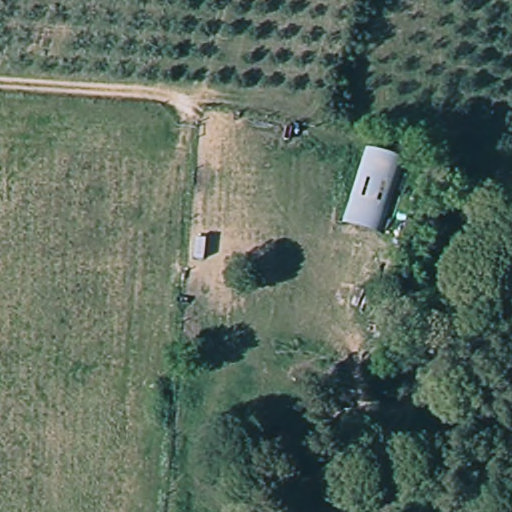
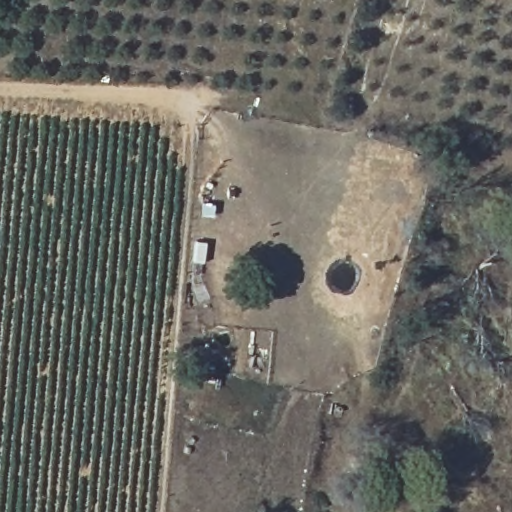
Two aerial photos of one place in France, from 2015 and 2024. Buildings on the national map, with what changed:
demolished [(381,232),(347,222),(370,147),(403,158),(381,232)]
unchanged [(209,239),(208,263),(199,263),(199,243),(209,239)]

